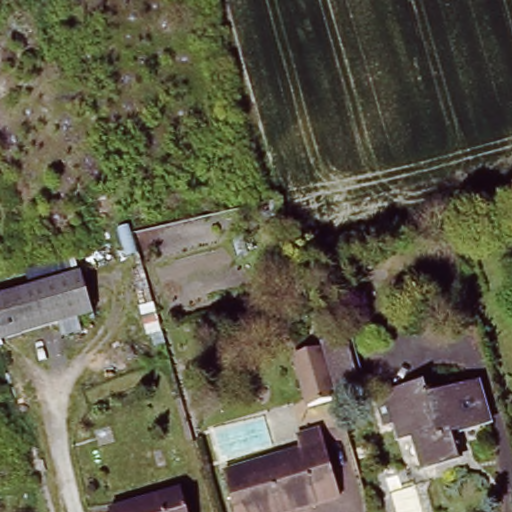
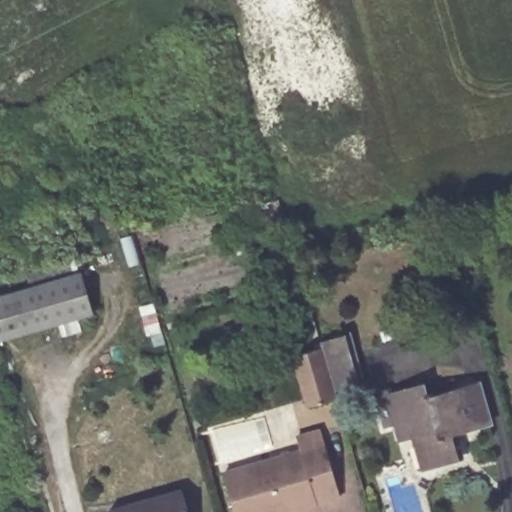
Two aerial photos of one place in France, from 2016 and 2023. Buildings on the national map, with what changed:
unchanged [(95,315),(0,342),(0,297),(83,273),(95,315)]
unchanged [(319,324),(348,322),(367,381),(335,390),(323,350),(319,324)]
unchanged [(335,390),(338,401),(311,409),(296,358),(315,352),(323,350),(335,390)]
unchanged [(429,397),(430,400),(481,385),(492,423),(456,433),(464,462),(430,472),(421,440),(408,444),(397,407),(429,397)]
unchanged [(305,453),(302,440),(325,433),(345,499),(302,512),(239,512),(227,476),(305,453)]
unchanged [(113,508),(185,489),(191,512),(114,512),(113,508)]

